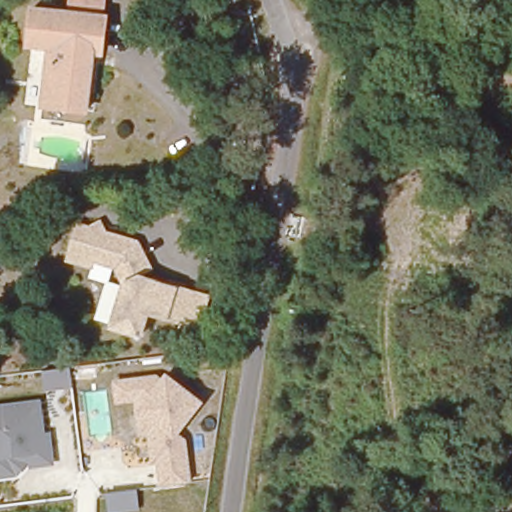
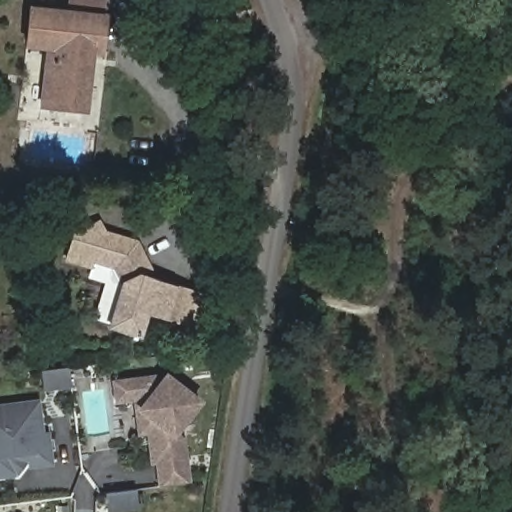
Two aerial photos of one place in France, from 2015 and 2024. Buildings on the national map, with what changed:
unchanged [(102,20),(97,53),(89,51),(79,111),(36,104),(45,44),(24,40),(29,6),(102,20)]
unchanged [(200,323),(174,317),(145,310),(140,334),(109,327),(120,283),(112,269),(90,263),(89,269),(64,263),(72,227),(85,230),(95,224),(101,234),(107,236),(133,242),(129,261),(137,275),(181,285),(207,290),(200,323)]
unchanged [(214,347),(212,370),(189,368),(191,345),(214,347)]
unchanged [(69,366),(72,388),(44,393),(41,370),(69,366)]
unchanged [(157,487),(153,465),(148,465),(146,435),(137,436),(132,402),(115,404),(112,379),(155,373),(161,378),(167,373),(204,401),(180,432),(187,437),(191,482),(157,487)]
unchanged [(45,432),(52,432),(56,465),(24,469),(19,477),(0,479),(0,403),(40,398),(45,432)]
unchanged [(108,512),(105,492),(136,489),(140,510),(128,512),(108,512)]

